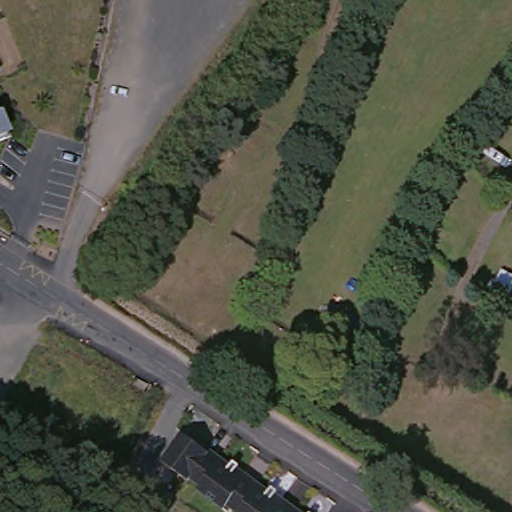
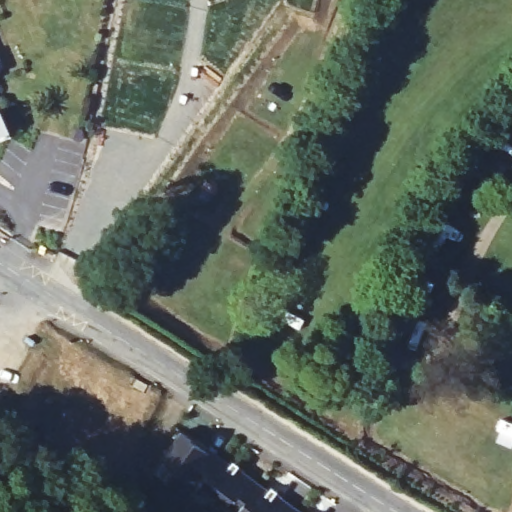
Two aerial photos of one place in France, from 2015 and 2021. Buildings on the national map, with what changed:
unchanged [(11,129),(0,133),(0,102),(11,129)]
unchanged [(197,442),(198,440),(236,468),(237,467),(274,494),(276,493),(302,512),(236,512),(226,505),(223,510),(196,490),(199,486),(189,479),(188,481),(161,460),(183,431),(197,442)]

